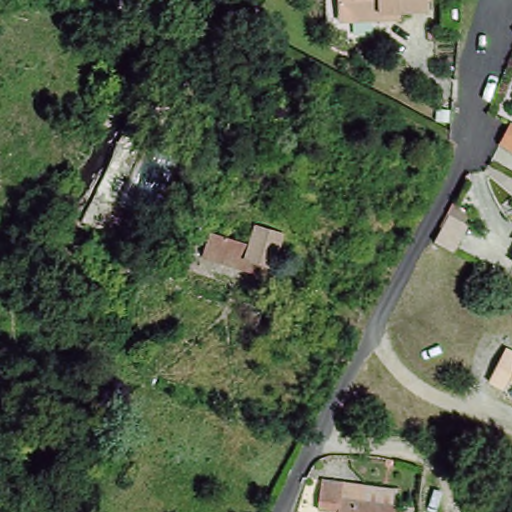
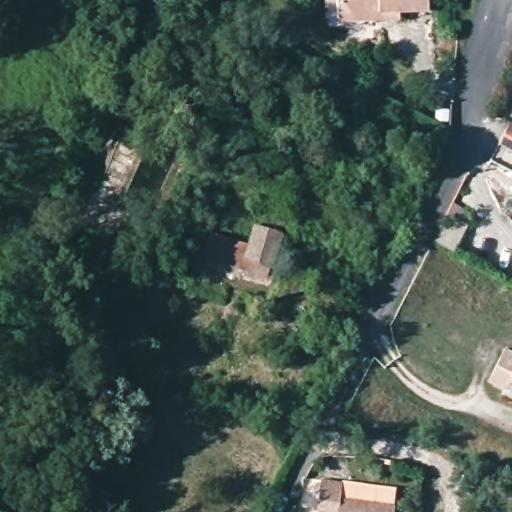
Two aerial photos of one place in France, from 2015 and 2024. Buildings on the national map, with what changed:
unchanged [(338,15),(339,0),(432,0),(432,5),(401,5),(400,15),(377,14),(338,15)]
unchanged [(512,124),(512,142),(505,139),(512,124)]
unchanged [(207,251),(214,227),(261,239),(267,222),(288,228),(281,259),(275,257),(269,269),(207,251)]
unchanged [(201,239),(197,254),(171,246),(177,235),(201,239)]
unchanged [(506,382),(490,376),(508,341),(512,343),(512,376),(508,375),(506,382)]
unchanged [(415,512),(330,512),(316,511),(322,475),(343,477),(403,483),(401,497),(417,498),(415,512)]

